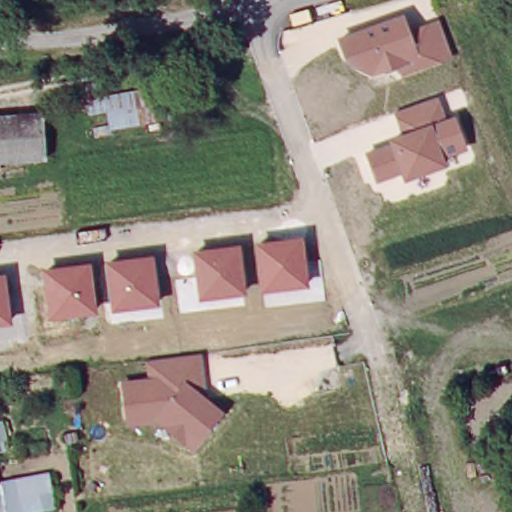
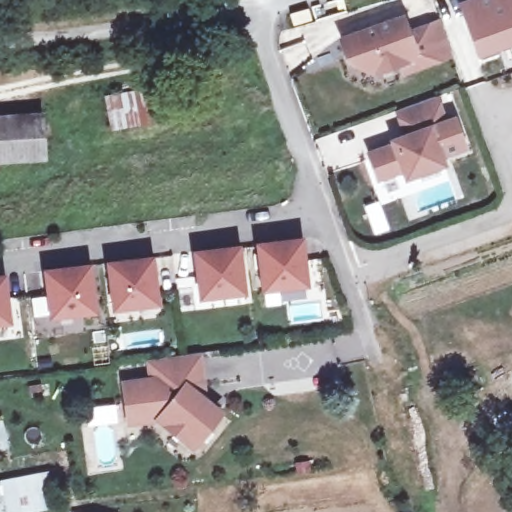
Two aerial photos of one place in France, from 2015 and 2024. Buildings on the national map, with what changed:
new [(512,0),(512,44),(477,57),(455,2),(461,0),(512,0)]
unchanged [(405,14),(411,29),(440,18),(453,57),(402,74),(400,67),(372,75),(345,61),(338,38),(405,14)]
unchanged [(107,93),(183,80),(189,115),(112,127),(107,93)]
unchanged [(402,137),(393,113),(439,97),(446,118),(455,115),(469,150),(444,160),(446,167),(403,182),(399,174),(375,182),(363,152),(402,137)]
unchanged [(50,158),(12,160),(0,161),(0,115),(47,112),(50,158)]
unchanged [(302,238),(309,288),(261,293),(255,243),(302,238)]
unchanged [(239,247),(245,296),(197,302),(191,252),(239,247)]
unchanged [(104,263),(151,256),(159,306),(111,312),(104,263)]
unchanged [(40,268),(90,262),(97,313),(47,319),(40,268)]
unchanged [(12,324),(0,326),(0,273),(6,272),(12,324)]
unchanged [(120,381),(148,376),(145,359),(201,352),(207,399),(223,413),(194,450),(157,424),(125,426),(120,381)]
unchanged [(54,507),(36,512),(0,512),(0,481),(45,471),(54,507)]

